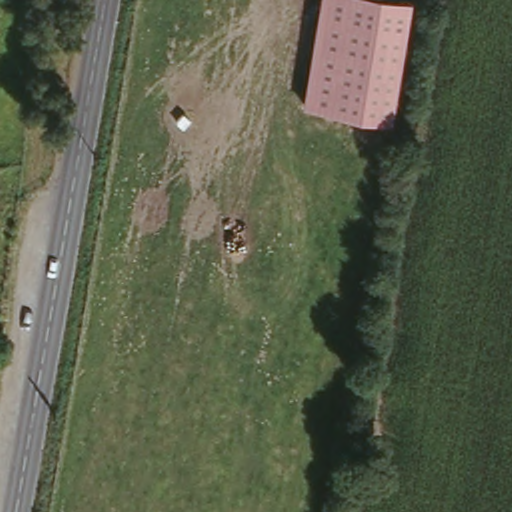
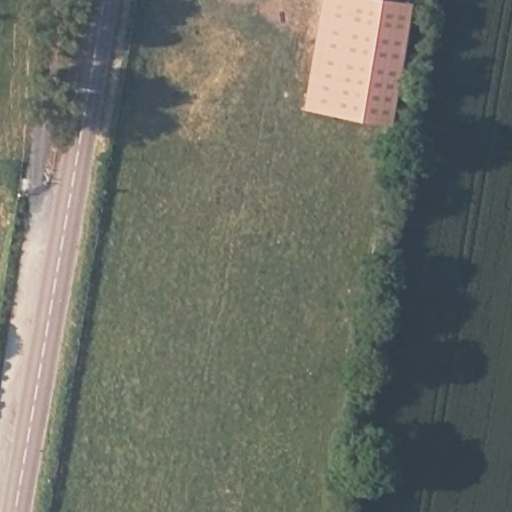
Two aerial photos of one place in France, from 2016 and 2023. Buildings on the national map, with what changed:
unchanged [(391,122),(301,108),(320,0),(413,0),(391,122)]

